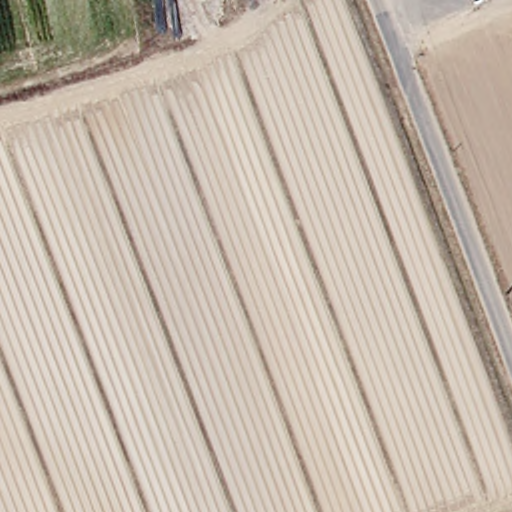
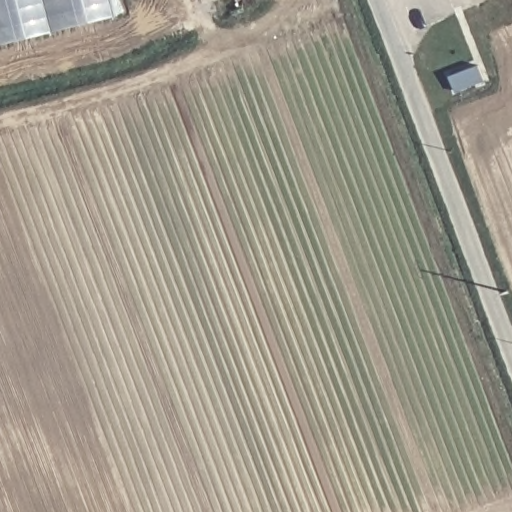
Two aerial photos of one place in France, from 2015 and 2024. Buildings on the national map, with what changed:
new [(121,12),(0,43),(0,0),(118,0),(121,12)]

